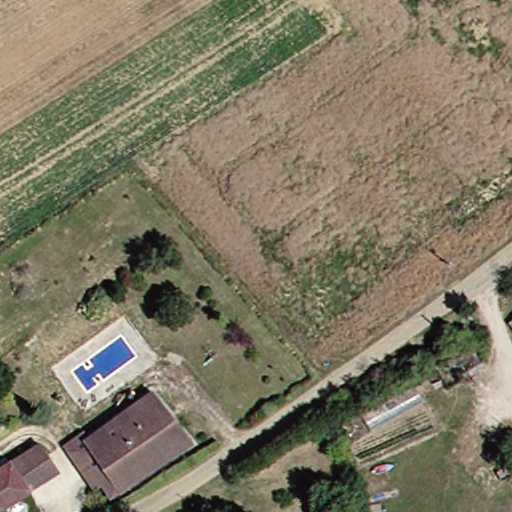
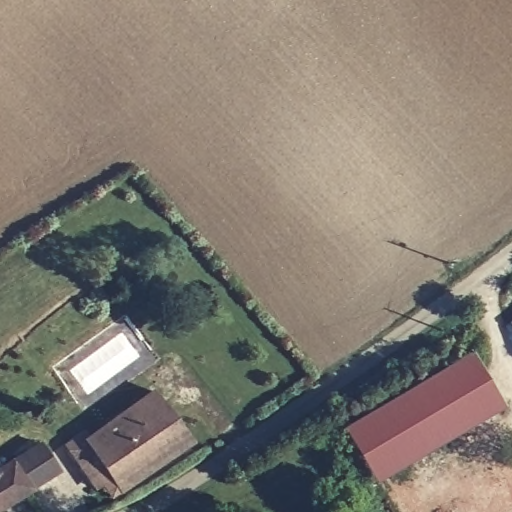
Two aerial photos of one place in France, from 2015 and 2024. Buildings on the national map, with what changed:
unchanged [(505,330),(512,323),(512,337),(505,330)]
new [(466,356),(497,411),(373,486),(341,431),(466,356)]
unchanged [(78,423),(84,432),(151,387),(192,441),(115,497),(112,493),(82,452),(65,463),(51,441),(78,423)]
unchanged [(0,465),(38,440),(58,468),(0,508),(0,465)]
unchanged [(90,507),(60,467),(65,463),(82,452),(112,493),(90,507)]

